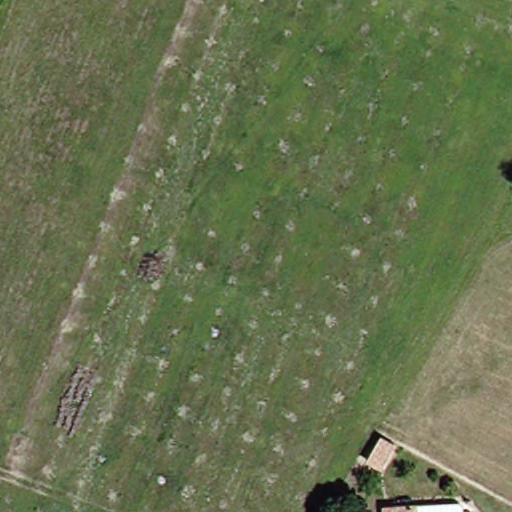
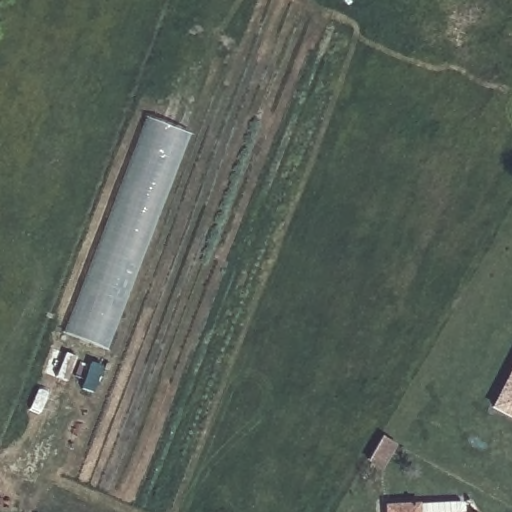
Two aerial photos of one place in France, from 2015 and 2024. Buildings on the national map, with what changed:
new [(61,335),(143,119),(188,136),(105,352),(61,335)]
new [(512,363),(512,409),(507,418),(488,408),(512,363)]
unchanged [(368,455),(381,432),(395,440),(382,462),(368,455)]
unchanged [(388,502),(415,501),(461,500),(461,512),(388,512),(388,502)]

